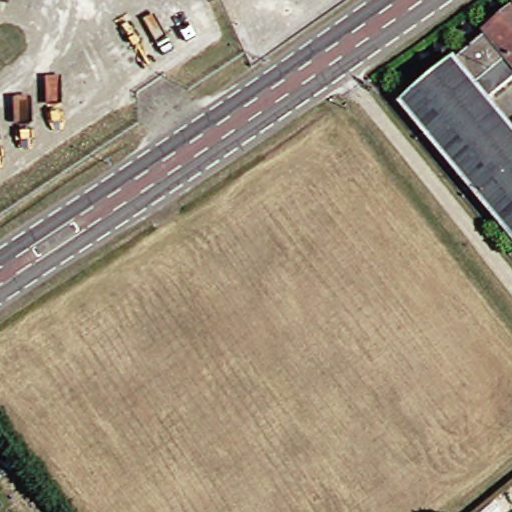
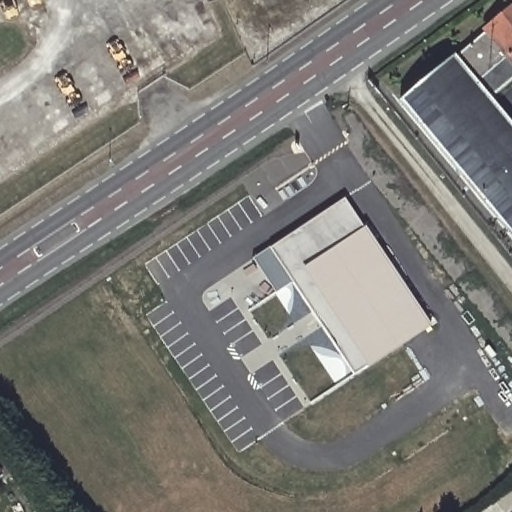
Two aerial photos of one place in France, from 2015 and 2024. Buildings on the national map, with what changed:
unchanged [(512,4),(512,75),(487,96),(512,127),(512,231),(401,97),(512,4)]
new [(293,283),(276,294),(254,260),(346,199),(430,327),(355,376),(293,283)]

